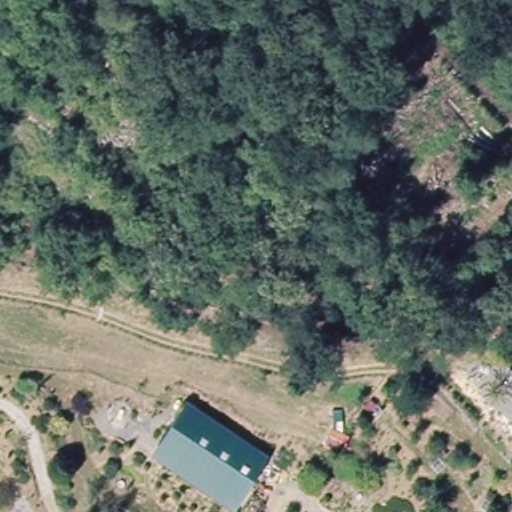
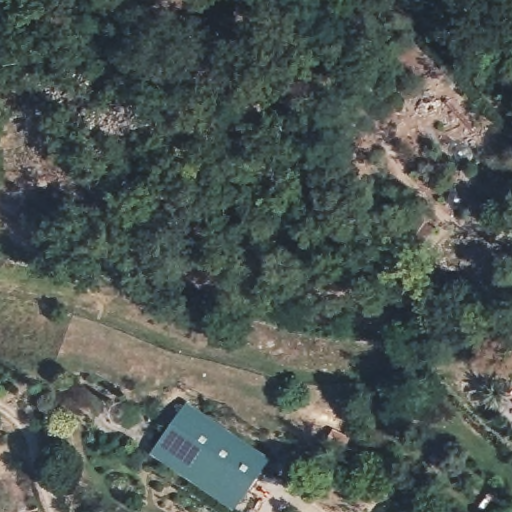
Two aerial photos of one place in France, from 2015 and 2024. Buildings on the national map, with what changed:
unchanged [(232,508),(152,445),(184,405),(264,468),(232,508)]

